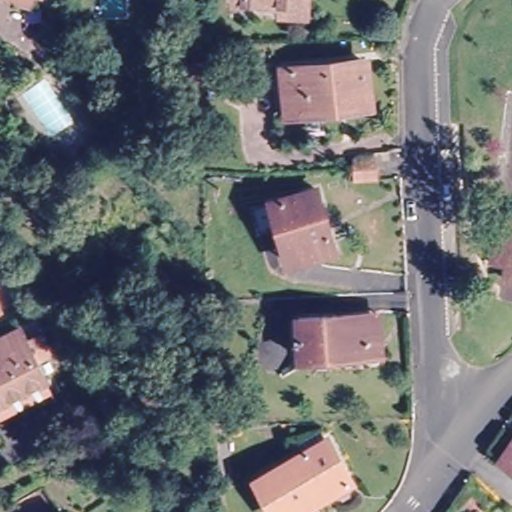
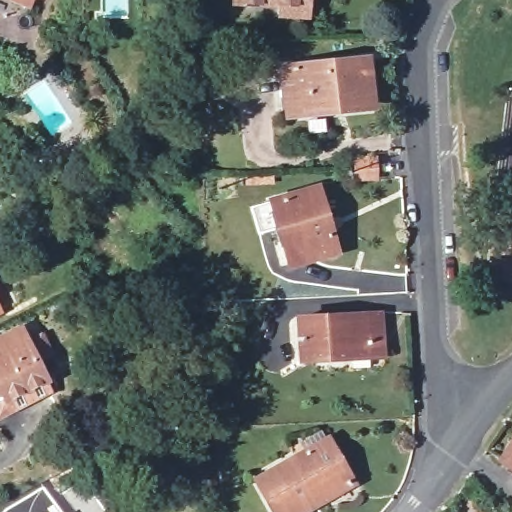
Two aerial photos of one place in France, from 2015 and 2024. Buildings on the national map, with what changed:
unchanged [(281,4),(242,1),(233,1),(233,0),(305,0),(305,5),(304,14),(280,13),(281,4)]
unchanged [(190,59),(221,56),(223,75),(192,78),(190,59)]
unchanged [(281,67),(365,59),(370,105),(286,114),(281,67)]
unchanged [(354,155),(374,154),(375,178),(355,178),(354,155)]
unchanged [(269,202),(316,188),(336,250),(289,264),(269,202)]
unchanged [(1,226),(0,226),(0,224),(1,226)]
unchanged [(510,257),(495,256),(498,229),(512,231),(512,272),(509,272),(510,257)]
unchanged [(0,300),(8,316),(0,320),(0,300)]
unchanged [(297,317),(366,315),(377,314),(380,354),(369,355),(299,358),(297,317)]
unchanged [(0,375),(0,332),(22,321),(30,335),(43,328),(50,342),(54,348),(40,355),(48,373),(54,385),(1,411),(0,408),(0,375)]
unchanged [(185,426),(177,416),(170,422),(162,427),(134,389),(140,385),(160,370),(189,407),(184,411),(191,421),(185,426)]
unchanged [(308,449),(327,438),(330,444),(352,482),(310,506),(298,512),(276,512),(256,479),(308,449)]
unchanged [(505,466),(498,461),(512,440),(512,471),(505,466)]

